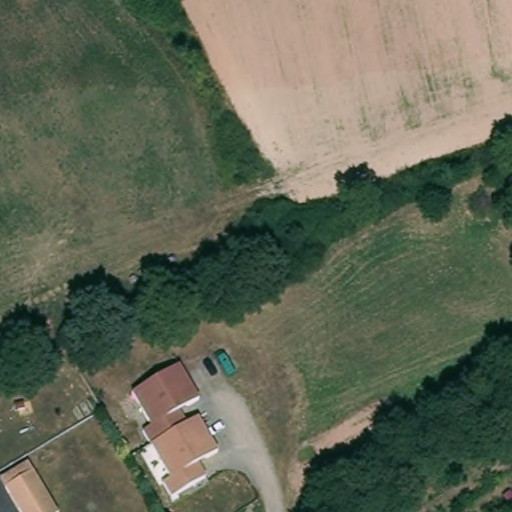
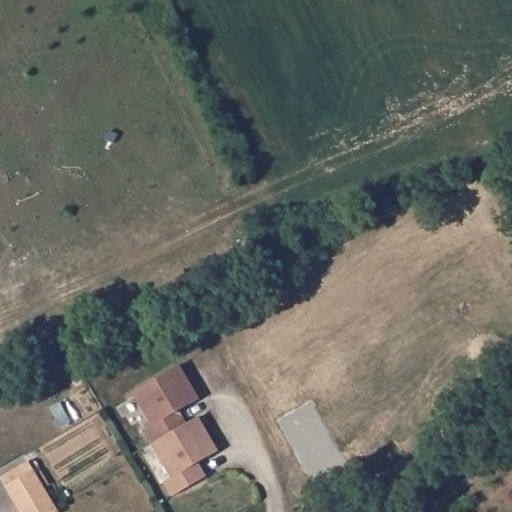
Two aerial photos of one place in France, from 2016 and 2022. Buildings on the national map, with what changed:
unchanged [(197,422),(217,456),(198,466),(206,481),(172,501),(163,487),(170,483),(151,450),(143,436),(152,431),(132,397),(180,370),(200,403),(181,414),(189,427),(197,422)]
unchanged [(0,481),(0,476),(28,459),(58,512),(18,512),(0,481)]

